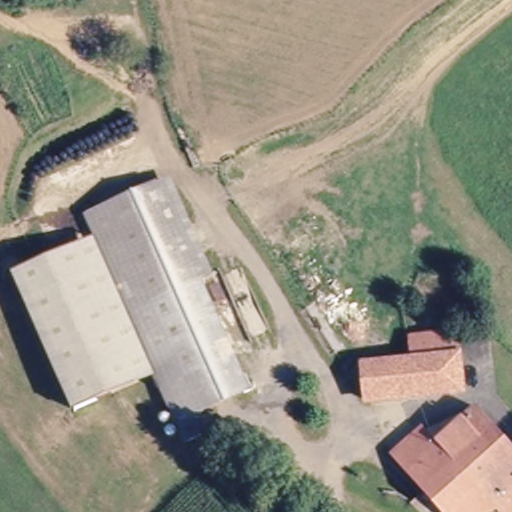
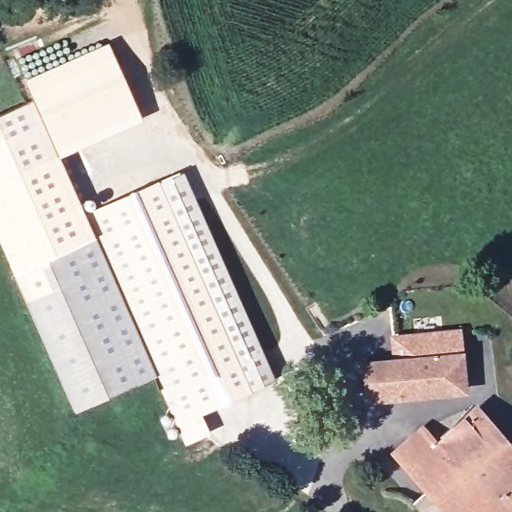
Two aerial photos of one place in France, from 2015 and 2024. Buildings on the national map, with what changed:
new [(144,122),(60,159),(58,154),(0,179),(0,115),(35,101),(26,81),(109,44),(144,122)]
new [(94,236),(16,270),(17,272),(11,274),(0,249),(0,179),(58,154),(85,214),(94,236)]
unchanged [(94,236),(85,214),(158,182),(184,170),(275,381),(251,391),(253,396),(200,420),(209,440),(188,449),(154,372),(77,407),(16,270),(94,236)]
demolished [(512,349),(512,353),(510,350),(512,349)]
unchanged [(401,366),(465,357),(465,389),(405,398),(377,402),(376,392),(373,369),(401,366)]
unchanged [(440,435),(474,407),(512,453),(512,512),(500,512),(495,506),(487,512),(446,512),(394,451),(426,422),(440,435)]

